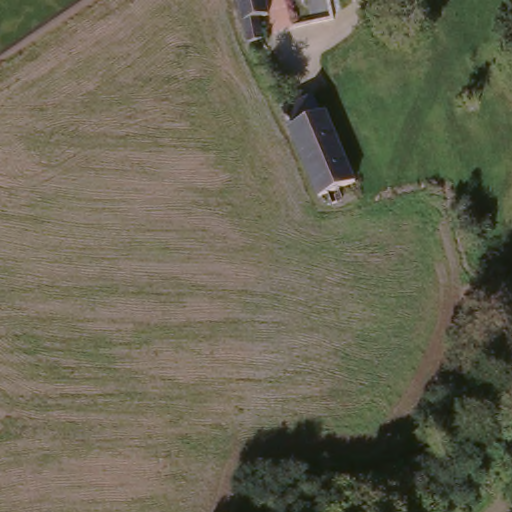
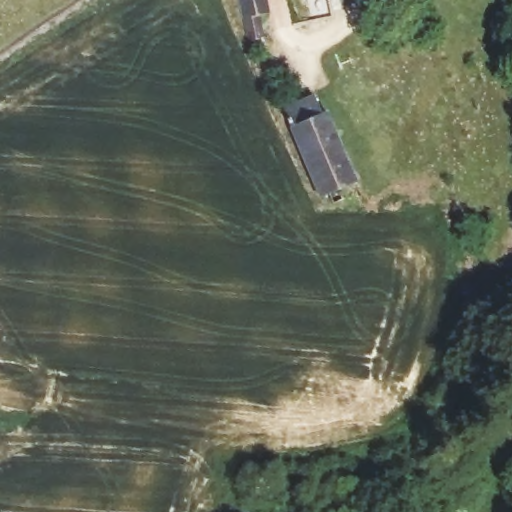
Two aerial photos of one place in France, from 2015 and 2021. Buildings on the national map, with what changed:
unchanged [(269,0),(274,10),(264,14),(274,42),(261,47),(240,0),(269,0)]
unchanged [(338,210),(326,214),(324,210),(316,212),(282,114),(296,108),(313,101),(320,120),(326,117),(351,193),(334,200),(338,210)]

